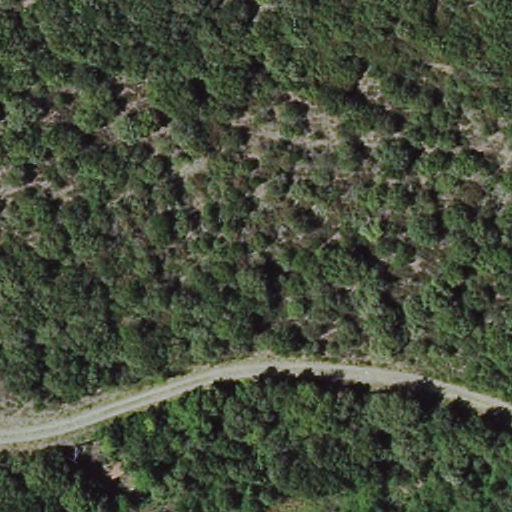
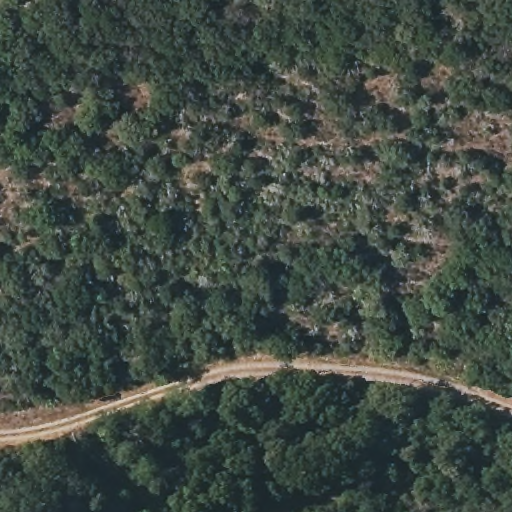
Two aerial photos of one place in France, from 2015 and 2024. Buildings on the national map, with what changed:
unchanged [(130,457),(134,469),(120,473),(115,461),(130,457)]

